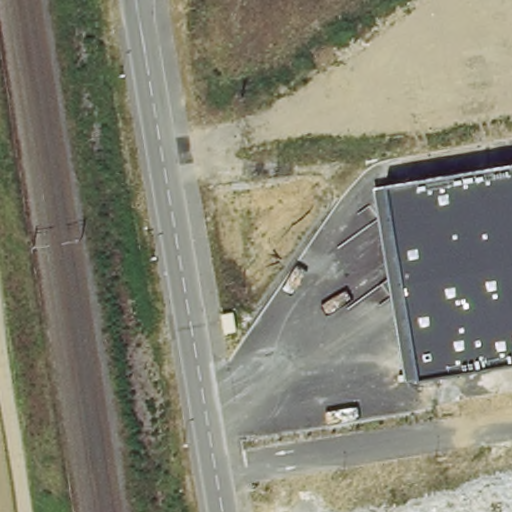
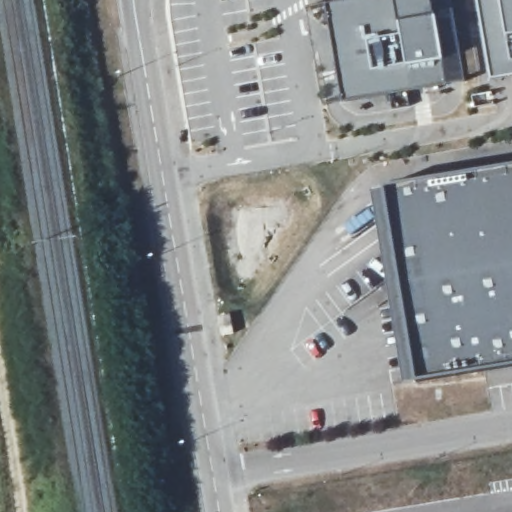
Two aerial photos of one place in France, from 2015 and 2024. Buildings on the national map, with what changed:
new [(442,86),(324,104),(308,7),(352,0),(431,0),(443,60),(439,61),(442,86)]
new [(480,0),(512,0),(512,77),(493,80),(480,0)]
unchanged [(407,384),(374,191),(512,168),(512,367),(407,384)]

